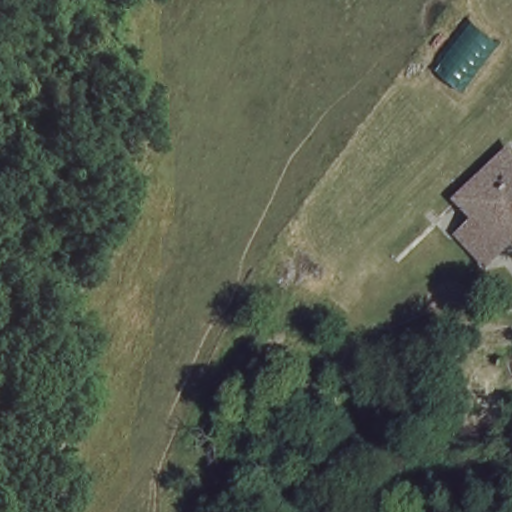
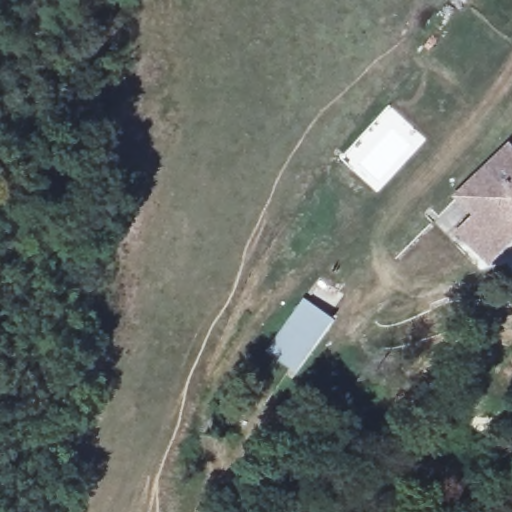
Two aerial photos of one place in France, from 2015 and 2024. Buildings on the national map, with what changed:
unchanged [(512,154),(512,238),(507,244),(482,215),(460,190),(489,160),(493,155),(497,150),(501,144),(512,154)]
unchanged [(507,244),(489,265),(465,235),(478,220),(482,215),(507,244)]
new [(331,321),(291,373),(264,353),(303,301),(331,321)]

